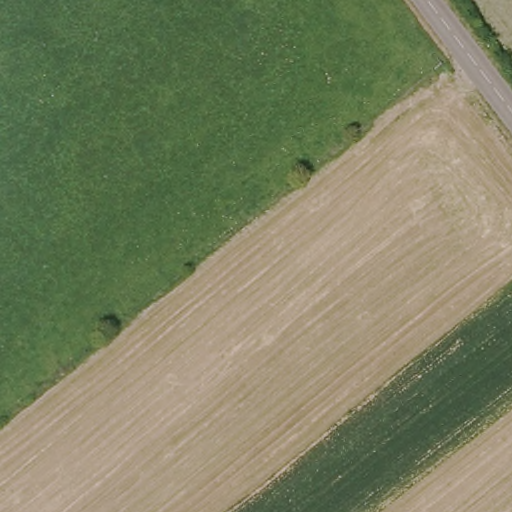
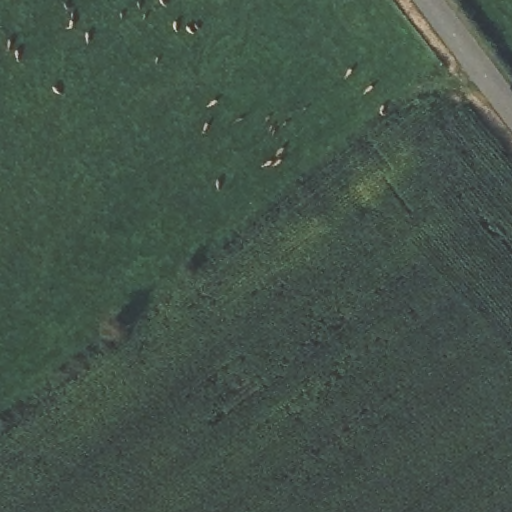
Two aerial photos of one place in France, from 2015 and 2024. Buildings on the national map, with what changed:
[]

